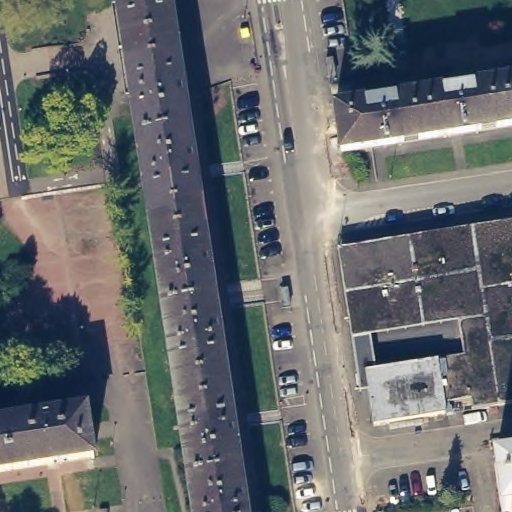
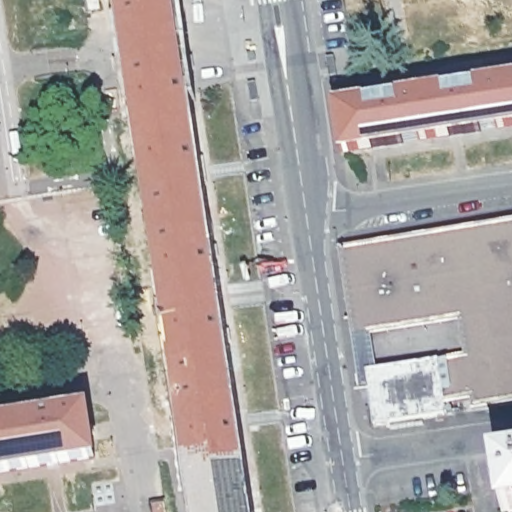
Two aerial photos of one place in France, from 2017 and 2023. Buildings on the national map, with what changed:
unchanged [(118,8),(117,0),(170,0),(183,87),(190,130),(202,215),(228,385),(240,469),(247,512),(194,512),(130,96),(118,8)]
unchanged [(330,108),(512,81),(512,126),(337,152),(330,108)]
unchanged [(512,217),(512,404),(472,409),(468,397),(442,401),(445,414),(372,424),(370,388),(358,391),(337,244),(512,217)]
unchanged [(100,455),(0,470),(0,419),(92,406),(100,455)]
unchanged [(500,460),(512,458),(512,508),(508,508),(500,460)]

